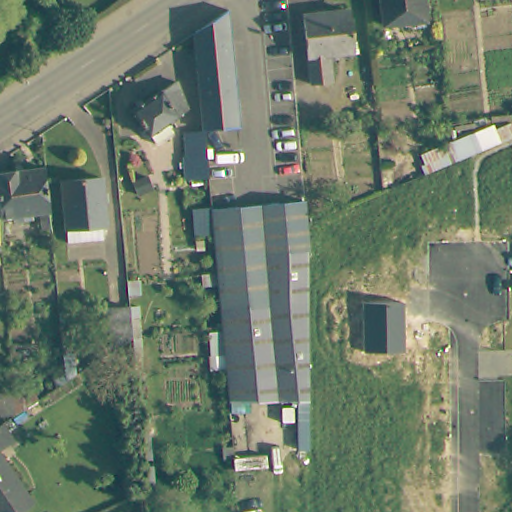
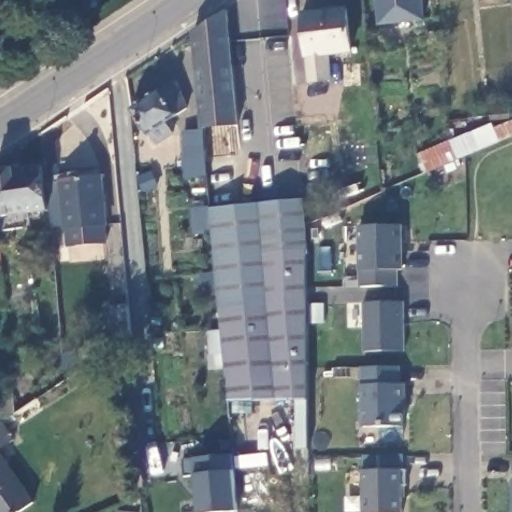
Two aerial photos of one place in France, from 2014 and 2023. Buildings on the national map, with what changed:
unchanged [(418,21),(375,25),(374,0),(416,0),(418,21)]
unchanged [(350,50),(327,52),(330,80),(307,82),(302,11),(345,6),(350,50)]
unchanged [(238,125),(202,128),(193,31),(226,9),(238,125)]
unchanged [(160,89),(175,79),(185,107),(146,133),(130,107),(135,104),(134,101),(140,97),(141,100),(160,88),(160,89)]
unchanged [(415,152),(509,111),(512,120),(512,138),(424,173),(415,152)]
unchanged [(181,132),(189,131),(196,131),(199,155),(184,157),(182,136),(181,132)]
unchanged [(39,227),(37,211),(0,216),(0,171),(41,166),(46,210),(48,226),(39,227)]
unchanged [(104,226),(64,229),(60,179),(99,175),(104,226)]
unchanged [(304,222),(307,396),(230,404),(228,377),(220,284),(213,210),(303,199),(304,222)]
new [(360,286),(360,270),(360,226),(404,225),(403,269),(398,285),(360,286)]
unchanged [(404,304),(405,352),(365,352),(364,303),(404,304)]
unchanged [(132,339),(133,344),(112,356),(109,312),(130,311),(132,339)]
new [(361,368),(401,366),(401,384),(406,383),(406,409),(405,409),(404,426),(362,426),(361,368)]
unchanged [(50,382),(40,386),(37,378),(49,375),(50,382)]
unchanged [(0,394),(1,394),(20,391),(23,407),(4,421),(4,419),(0,420),(0,394)]
new [(234,473),(239,511),(228,512),(196,512),(193,476),(181,477),(180,460),(232,453),(234,473)]
unchanged [(32,502),(19,512),(0,512),(0,455),(32,502)]
unchanged [(363,455),(377,455),(376,469),(381,470),(381,455),(403,455),(403,470),(406,470),(405,485),(402,485),(402,512),(362,512),(362,470),(363,455)]

